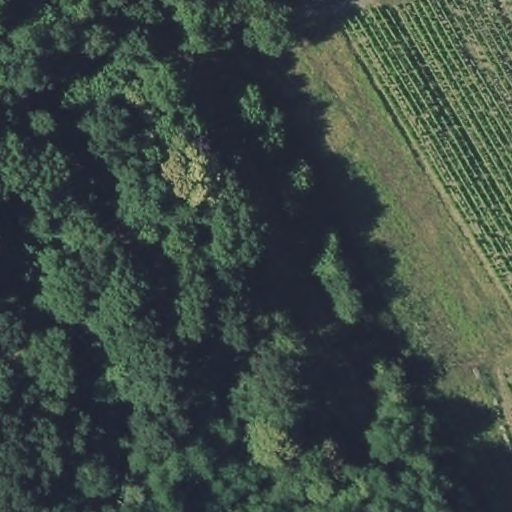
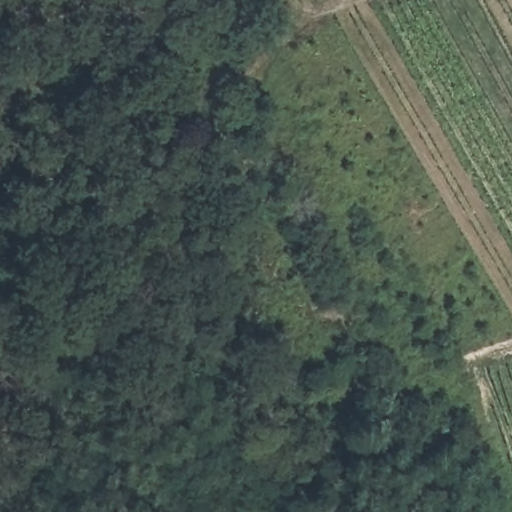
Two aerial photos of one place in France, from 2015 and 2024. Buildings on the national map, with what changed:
unchanged [(214,121),(179,132),(172,109),(206,98),(214,121)]

